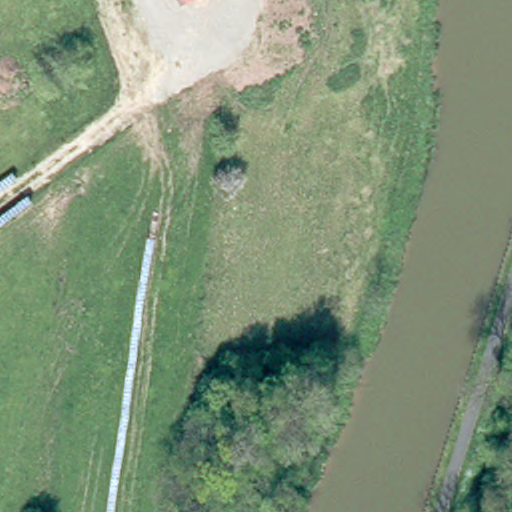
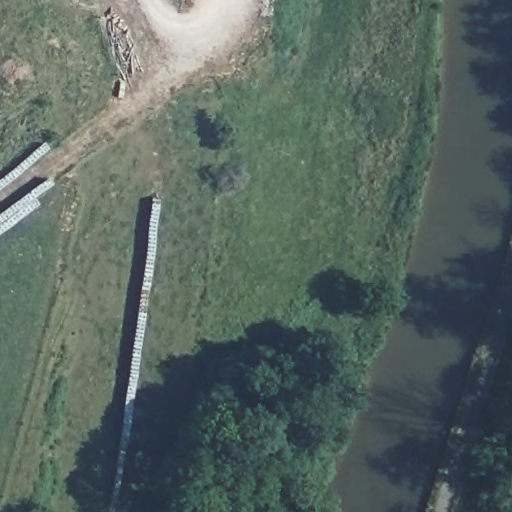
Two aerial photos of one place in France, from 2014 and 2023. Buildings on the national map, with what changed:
unchanged [(189,0),(222,0),(198,14),(189,0)]

